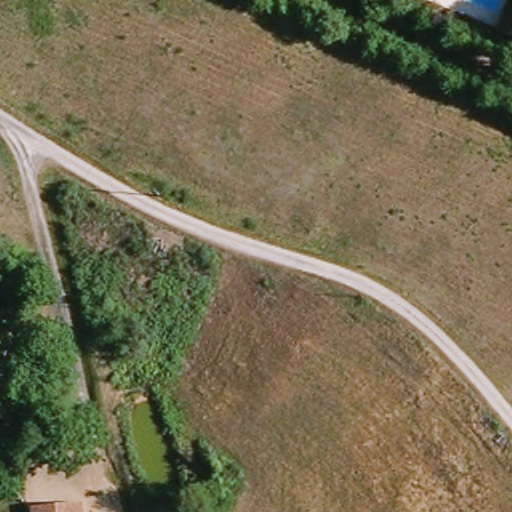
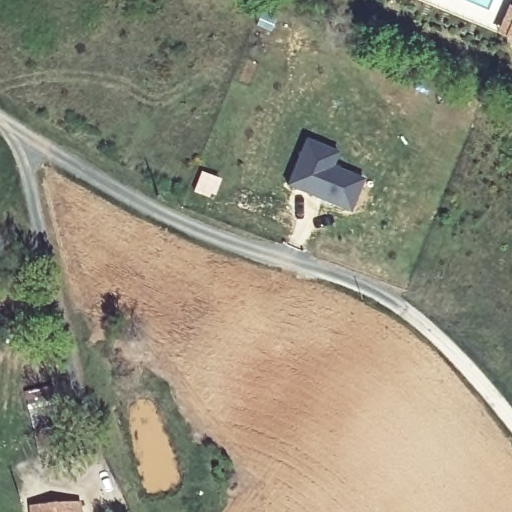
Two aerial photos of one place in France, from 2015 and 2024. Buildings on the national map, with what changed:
unchanged [(510,37),(500,33),(512,6),(512,38),(510,37)]
new [(340,152),(335,167),(365,179),(350,212),(286,187),(306,138),(340,152)]
unchanged [(60,505),(81,502),(82,512),(61,512),(60,505)]
unchanged [(61,512),(35,512),(34,507),(60,505),(61,512)]

